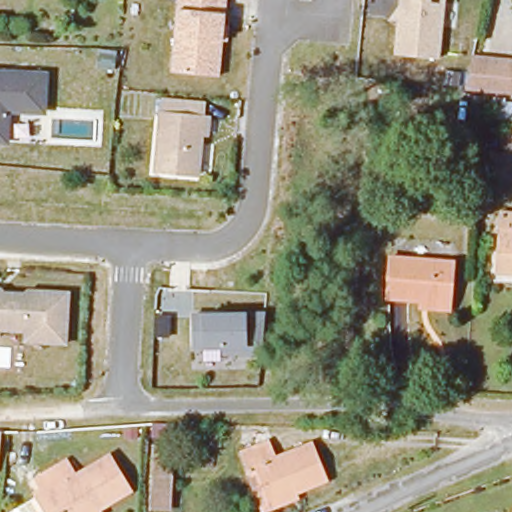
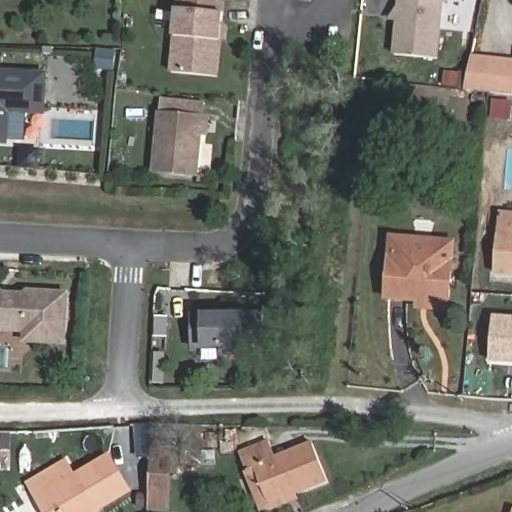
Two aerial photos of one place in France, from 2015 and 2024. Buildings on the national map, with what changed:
unchanged [(225,25),(229,26),(228,45),(223,44),(220,77),(170,74),(177,0),(228,0),(225,25)]
unchanged [(442,59),(395,56),(398,23),(389,22),(399,6),(400,0),(447,0),(442,59)]
unchanged [(512,63),(512,96),(489,94),(465,91),(472,59),(492,61),(512,63)]
unchanged [(49,117),(15,116),(14,137),(9,137),(9,149),(0,148),(0,69),(51,71),(49,117)]
unchanged [(210,138),(204,138),(200,179),(153,176),(159,112),(162,113),(164,99),(206,103),(205,116),(212,116),(210,138)]
unchanged [(498,235),(500,236),(501,212),(512,212),(512,281),(494,279),(498,235)]
unchanged [(453,263),(449,304),(387,299),(390,258),(453,263)]
unchanged [(20,296),(27,296),(27,292),(65,292),(67,293),(66,342),(62,342),(26,341),(26,331),(18,331),(0,331),(0,295),(20,296)]
unchanged [(266,312),(266,356),(223,358),(222,353),(194,354),(192,314),(204,314),(243,312),(266,312)]
new [(494,318),(512,318),(512,363),(490,362),(494,318)]
new [(1,433),(0,449),(0,433),(1,433)]
unchanged [(265,512),(247,472),(238,452),(268,440),(275,456),(312,442),(312,441),(329,483),(269,506),(271,512),(270,512),(265,512)]
unchanged [(177,458),(175,506),(153,505),(155,456),(177,458)]
unchanged [(47,490),(41,480),(71,462),(79,477),(114,457),(135,492),(103,511),(104,512),(51,512),(40,494),(47,490)]

